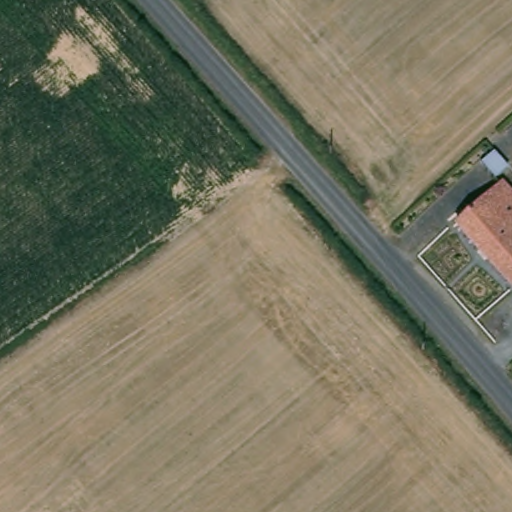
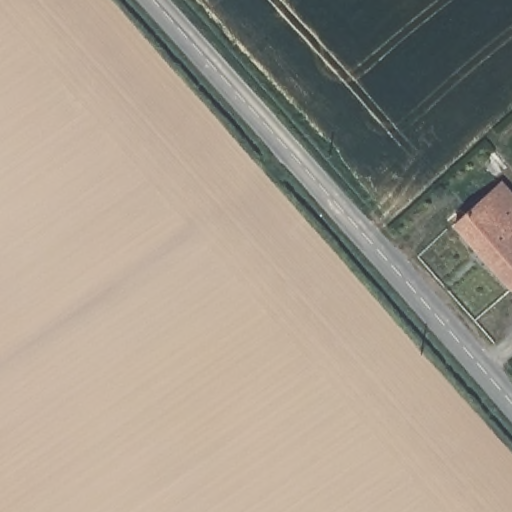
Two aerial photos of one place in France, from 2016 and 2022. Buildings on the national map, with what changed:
unchanged [(503,178),(512,189),(512,279),(457,218),(503,178)]

